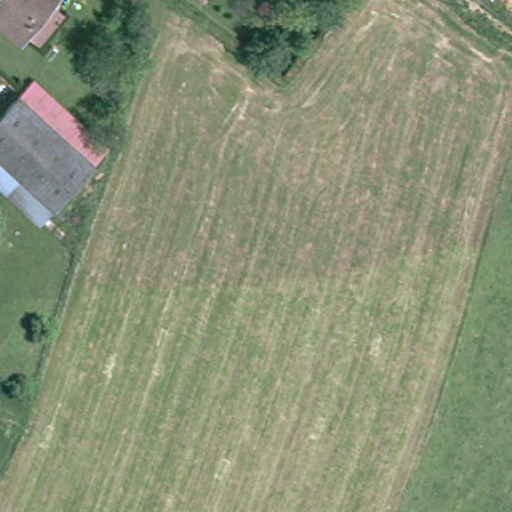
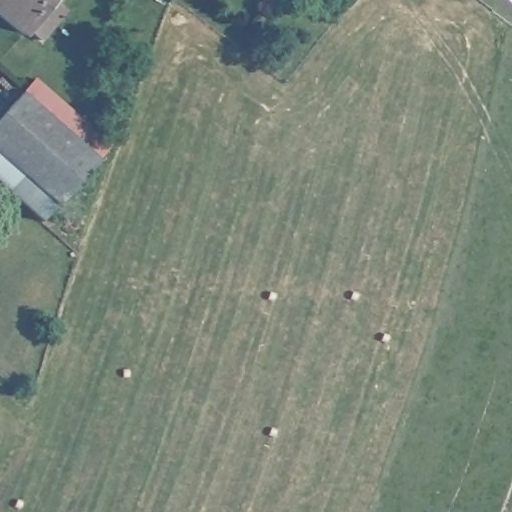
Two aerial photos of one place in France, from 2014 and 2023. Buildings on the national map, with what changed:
unchanged [(22,35),(0,17),(0,0),(51,0),(50,1),(63,13),(40,41),(26,30),(22,35)]
unchanged [(46,219),(0,177),(0,119),(40,75),(114,143),(46,219)]

